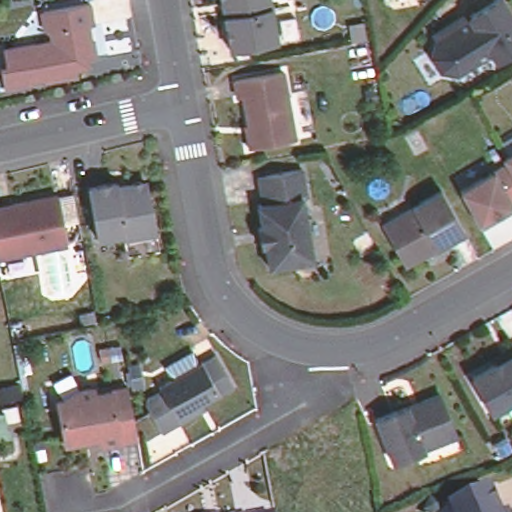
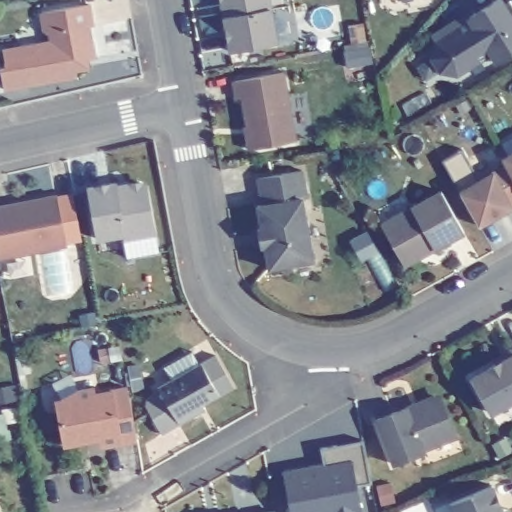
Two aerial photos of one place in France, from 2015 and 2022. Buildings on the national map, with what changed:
unchanged [(284,5),(265,8),(270,44),(227,51),(217,0),(283,0),(284,5)]
unchanged [(512,17),(512,53),(497,63),(492,55),(458,76),(440,73),(431,59),(437,44),(432,38),(469,14),(471,18),(499,0),(502,0),(512,17)]
unchanged [(89,5),(92,28),(87,29),(90,43),(92,42),(95,59),(82,61),(75,68),(76,79),(45,83),(44,73),(30,75),(32,86),(2,90),(0,70),(5,69),(3,51),(36,47),(39,49),(52,48),(50,36),(45,31),(42,13),(89,5)]
unchanged [(284,74),(295,143),(254,150),(245,98),(239,99),(235,82),(284,74)]
unchanged [(500,160),(512,153),(512,180),(505,167),(500,160)]
unchanged [(506,205),(509,209),(499,215),(492,212),(489,220),(475,228),(455,192),(505,167),(512,180),(512,201),(506,205)]
unchanged [(305,172),(309,199),(304,200),(265,206),(259,179),(305,172)]
unchanged [(125,256),(120,232),(95,237),(85,186),(114,181),(115,192),(124,190),(130,182),(137,181),(145,187),(152,225),(156,250),(125,256)]
unchanged [(464,235),(402,268),(380,228),(374,214),(404,197),(412,210),(442,194),(464,235)]
unchanged [(29,253),(0,258),(0,212),(10,211),(9,205),(55,198),(65,244),(28,252),(29,253)]
unchanged [(315,262),(271,270),(267,246),(262,247),(259,231),(264,230),(259,207),(265,206),(304,200),(315,262)]
unchanged [(484,416),(464,381),(489,367),(485,361),(508,349),(512,347),(512,399),(484,416)]
unchanged [(180,413),(182,418),(150,436),(134,407),(137,400),(150,392),(148,389),(200,359),(204,357),(222,388),(209,395),(207,396),(180,413)]
unchanged [(64,447),(56,405),(77,393),(92,391),(92,397),(127,390),(136,441),(102,447),(100,440),(64,447)]
unchanged [(420,451),(390,462),(374,417),(432,396),(438,399),(452,435),(458,450),(423,462),(420,451)]
new [(320,451),(365,442),(372,486),(357,489),(361,512),(291,512),(285,475),(324,467),(320,451)]
unchanged [(503,512),(461,512),(457,502),(493,487),(503,512)]

